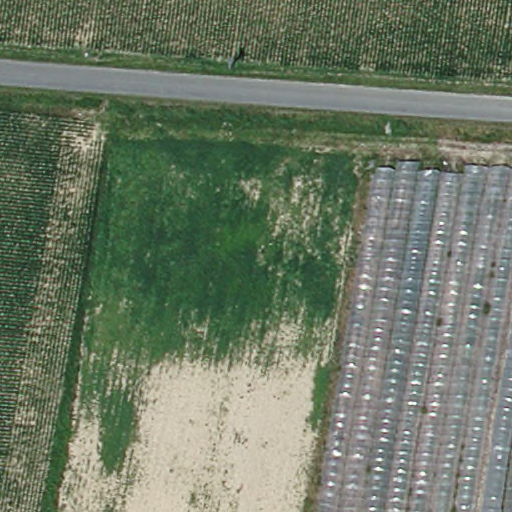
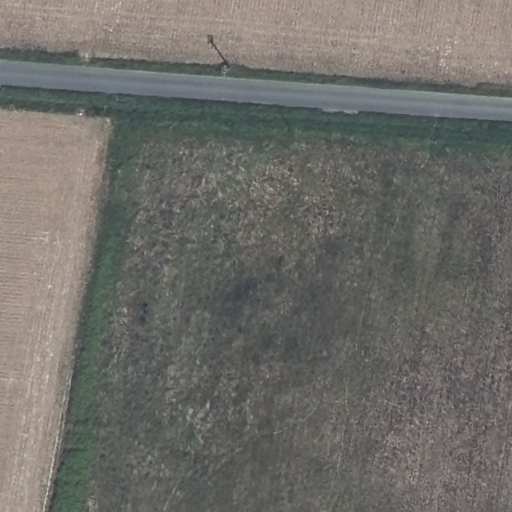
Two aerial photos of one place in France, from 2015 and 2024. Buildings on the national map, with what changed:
demolished [(500,512),(324,512),(382,161),(512,169),(512,435),(500,512)]

